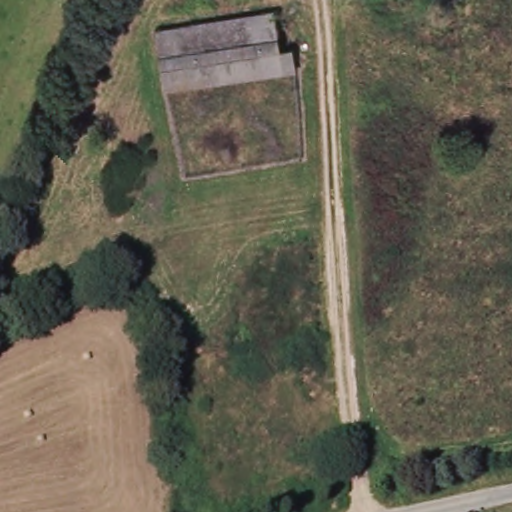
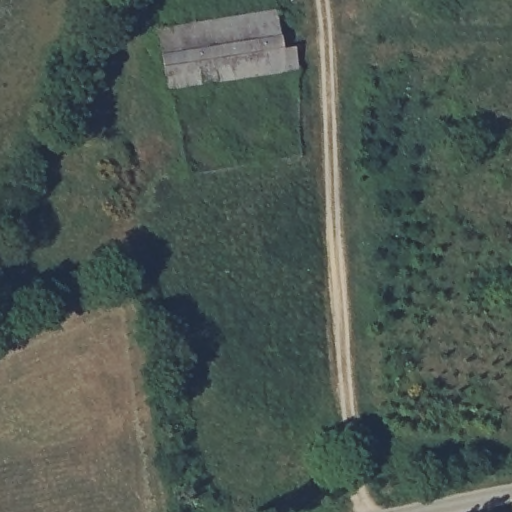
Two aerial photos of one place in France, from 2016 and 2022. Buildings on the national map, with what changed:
unchanged [(166,91),(159,27),(282,8),(283,16),(279,16),(284,49),(298,48),(301,70),(166,91)]

